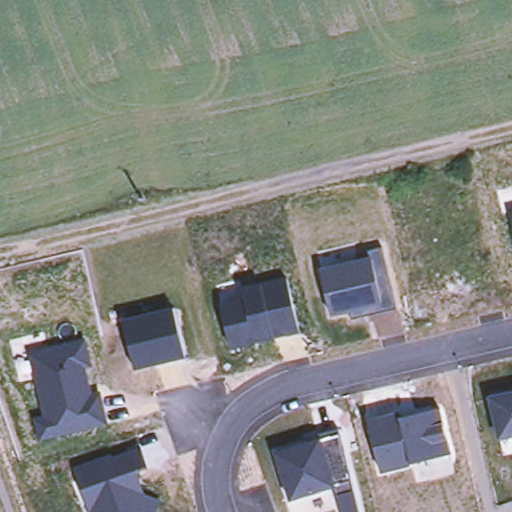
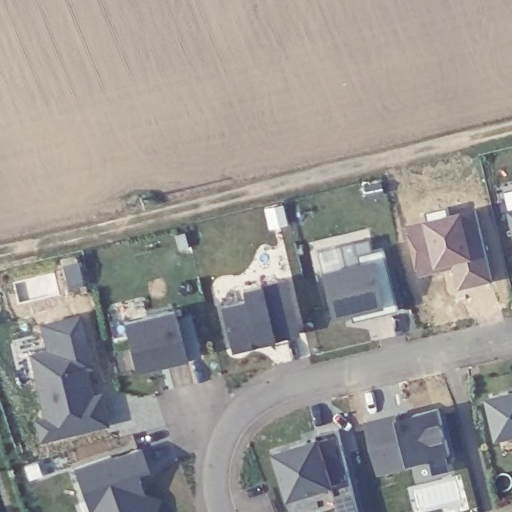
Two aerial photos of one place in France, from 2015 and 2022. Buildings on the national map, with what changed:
new [(475,211),(492,285),(457,291),(454,272),(416,279),(405,226),(475,211)]
unchanged [(512,211),(512,217),(510,211),(512,211)]
unchanged [(352,320),(350,310),(331,314),(321,272),(359,263),(356,254),(383,247),(398,309),(352,320)]
unchanged [(260,341),(258,337),(251,339),(252,343),(232,348),(222,305),(245,300),(243,290),(287,279),(300,331),(260,341)]
unchanged [(187,357),(169,362),(167,357),(157,359),(159,364),(136,370),(124,321),(175,309),(187,357)]
unchanged [(101,394),(107,423),(42,439),(37,420),(47,417),(32,354),(85,341),(91,365),(85,367),(90,388),(92,396),(101,394)]
unchanged [(491,398),(512,394),(512,435),(500,438),(491,398)]
unchanged [(452,454),(381,472),(370,422),(400,414),(402,421),(418,418),(417,414),(440,408),(452,454)]
unchanged [(339,495),(336,486),(293,497),(281,448),(321,438),(320,434),(340,429),(356,491),(361,512),(343,512),(339,495)]
unchanged [(77,468),(111,456),(112,458),(136,450),(141,448),(147,467),(142,469),(136,471),(145,495),(153,499),(160,501),(156,509),(155,512),(93,512),(88,499),(77,468)]

